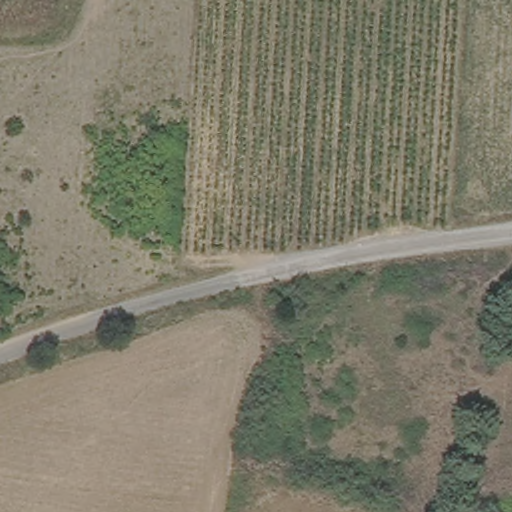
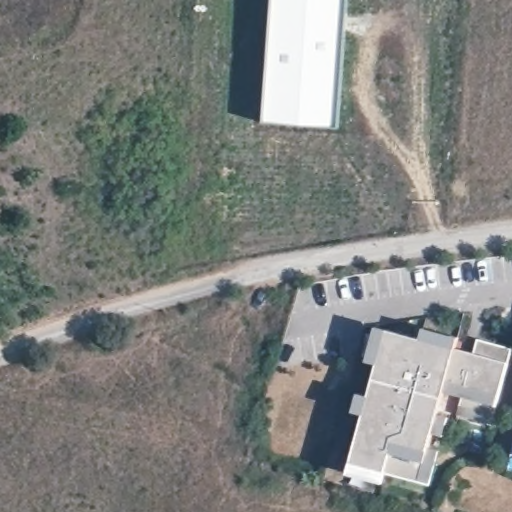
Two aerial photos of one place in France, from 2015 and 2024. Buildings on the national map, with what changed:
new [(275,0),(350,0),(343,126),(268,122),(275,0)]
new [(444,436),(433,433),(420,482),(351,463),(387,329),(421,339),(424,328),(459,337),(456,348),(474,353),(478,339),(512,348),(494,416),(460,406),(463,397),(444,392),(438,414),(449,417),(444,436)]

